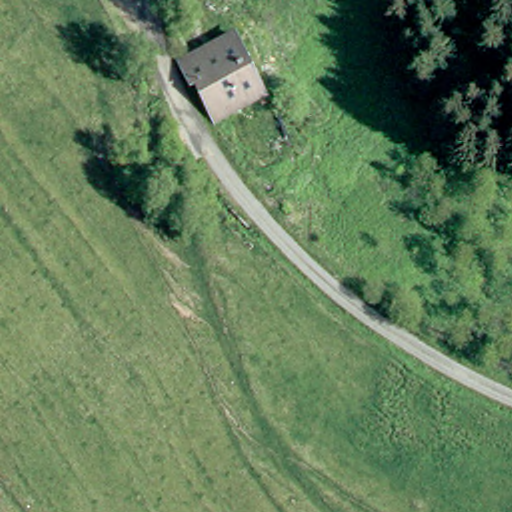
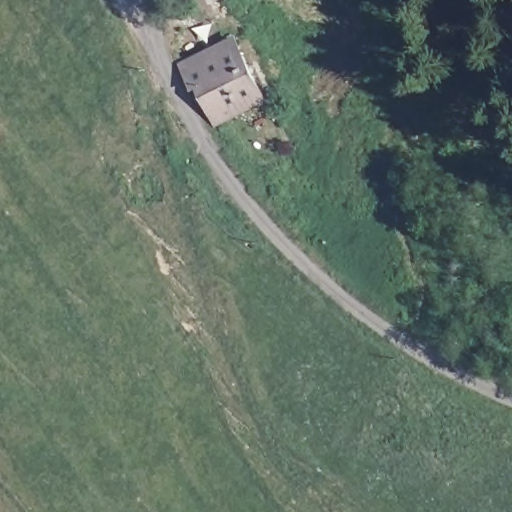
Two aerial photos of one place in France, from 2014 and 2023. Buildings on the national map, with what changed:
unchanged [(195,79),(188,61),(235,38),(265,100),(220,123),(195,79)]

